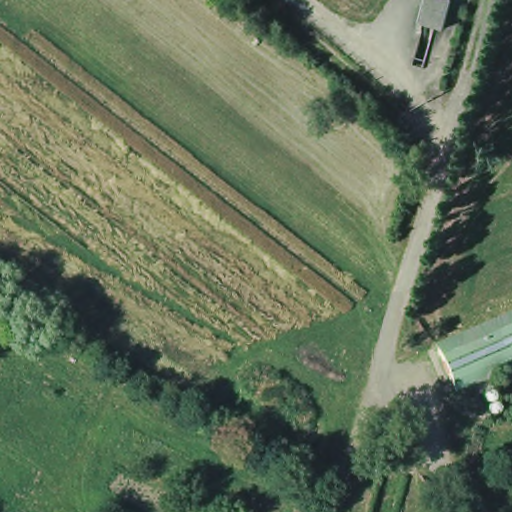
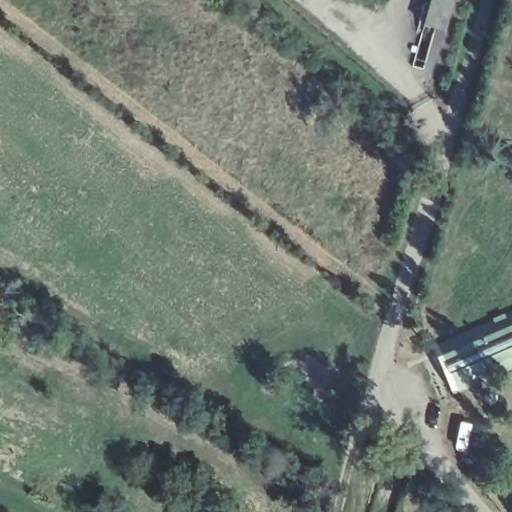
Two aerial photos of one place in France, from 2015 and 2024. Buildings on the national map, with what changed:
unchanged [(422,26),(430,0),(450,0),(440,33),(422,26)]
unchanged [(512,308),(512,360),(453,386),(435,342),(512,308)]

